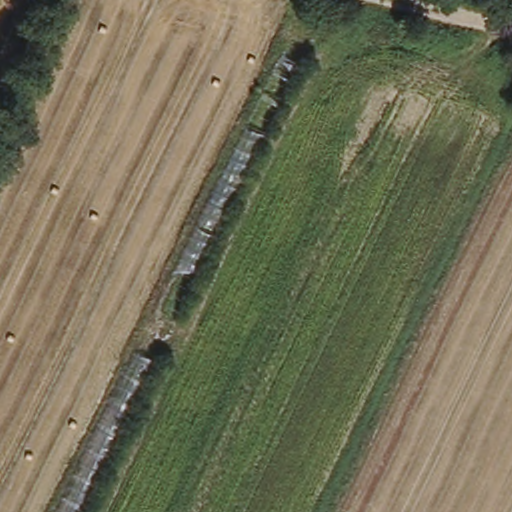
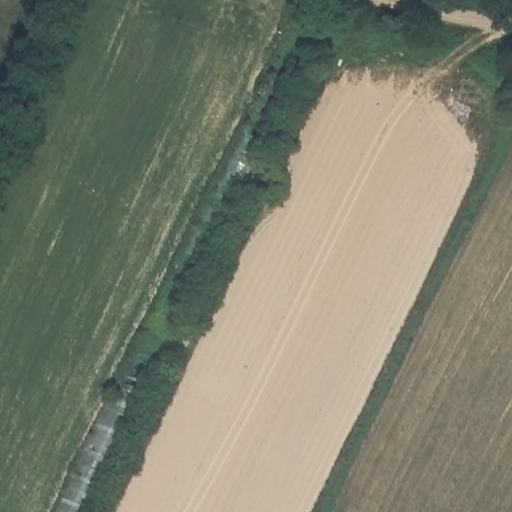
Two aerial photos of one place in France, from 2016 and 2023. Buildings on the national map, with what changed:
unchanged [(88,512),(56,512),(284,48),(306,59),(88,512)]

